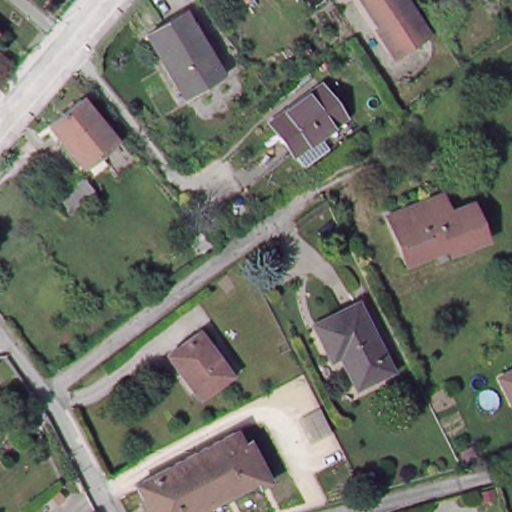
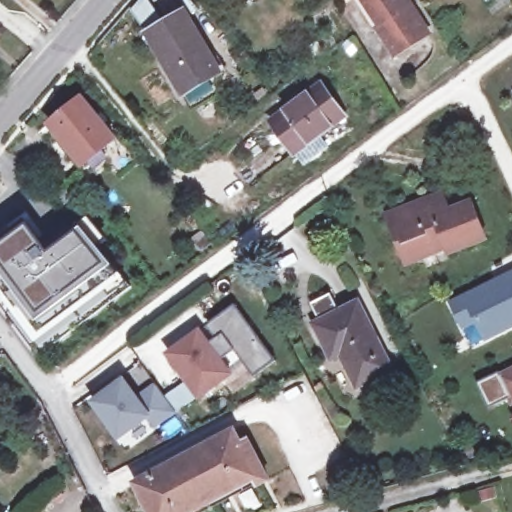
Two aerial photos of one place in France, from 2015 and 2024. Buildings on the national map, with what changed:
unchanged [(387,32),(389,30),(370,0),(414,0),(437,36),(418,49),(403,59),(399,53),(387,32)]
unchanged [(189,18),(223,75),(187,96),(152,39),(189,18)]
unchanged [(2,36),(0,38),(0,35),(2,36)]
unchanged [(309,164),(299,151),(274,119),(324,83),(348,114),(322,134),(332,147),(309,164)]
unchanged [(81,97),(115,139),(82,164),(49,123),(81,97)]
unchanged [(95,192),(70,212),(52,192),(65,180),(69,184),(81,174),(95,192)]
unchanged [(395,258),(380,219),(432,199),(438,215),(460,208),(474,243),(440,256),(439,253),(400,268),(395,258)]
new [(25,220),(28,225),(50,254),(78,232),(82,228),(112,266),(119,274),(127,282),(132,288),(34,359),(0,314),(0,240),(25,220)]
new [(512,329),(485,343),(477,324),(462,330),(448,304),(512,273),(512,329)]
unchanged [(315,324),(357,303),(390,369),(356,386),(340,354),(332,359),(315,324)]
unchanged [(207,331),(239,373),(209,397),(177,354),(207,331)]
unchanged [(512,386),(505,371),(512,368),(512,386)]
new [(123,380),(137,399),(156,386),(174,411),(154,426),(147,416),(118,437),(92,402),(123,380)]
demolished [(306,419),(322,453),(287,471),(270,437),(306,419)]
unchanged [(135,482),(239,428),(267,479),(259,484),(255,477),(189,512),(151,512),(135,482)]

